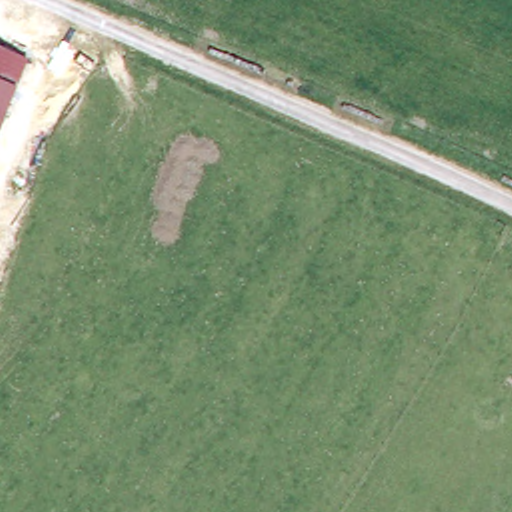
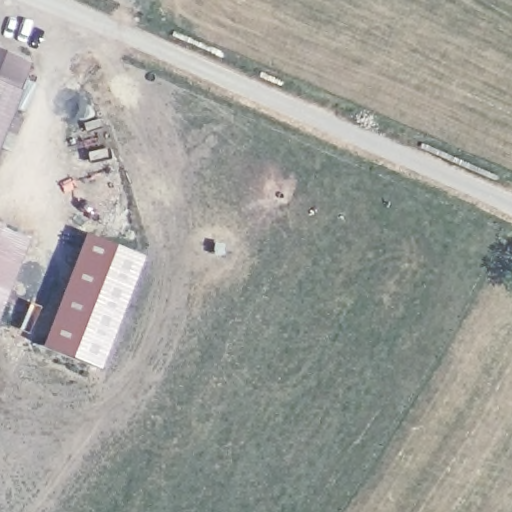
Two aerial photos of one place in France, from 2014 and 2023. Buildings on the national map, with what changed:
unchanged [(27,61),(4,113),(0,112),(0,50),(27,61)]
unchanged [(4,113),(0,123),(0,112),(4,113)]
new [(27,233),(0,299),(0,223),(27,233)]
new [(92,368),(35,345),(80,232),(138,255),(92,368)]

